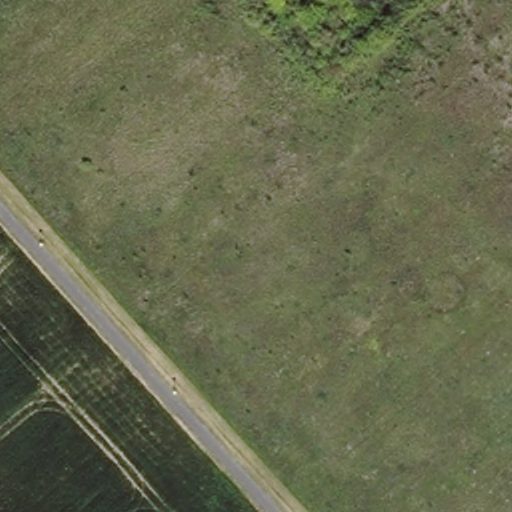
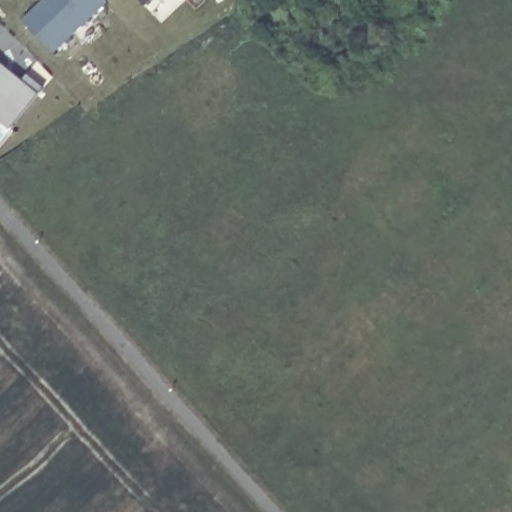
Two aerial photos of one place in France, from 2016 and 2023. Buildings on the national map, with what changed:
new [(24,20),(43,0),(108,0),(110,2),(56,53),(24,20)]
new [(139,0),(151,0),(145,6),(139,0)]
new [(12,129),(0,120),(0,60),(22,79),(28,73),(45,86),(12,129)]

